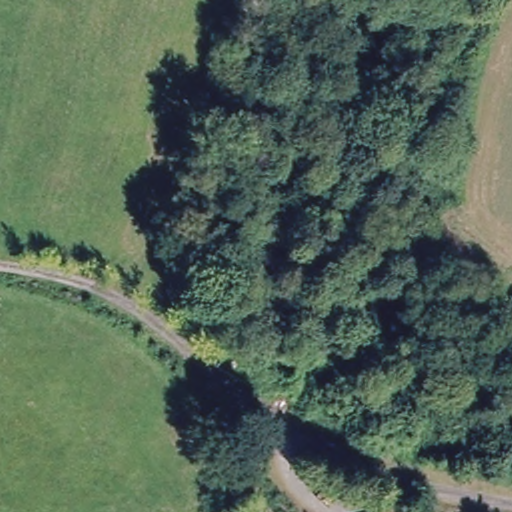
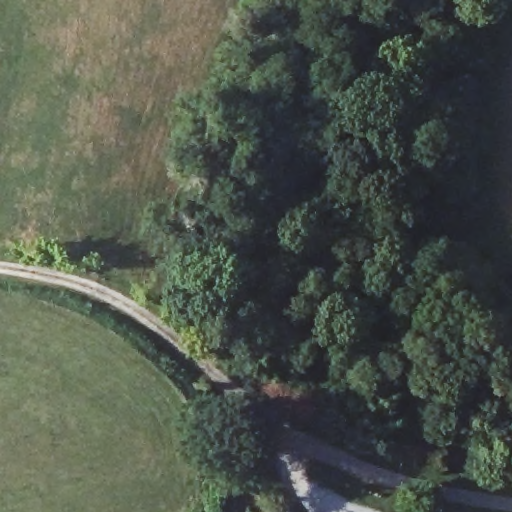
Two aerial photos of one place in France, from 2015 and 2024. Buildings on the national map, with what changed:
unchanged [(512,341),(512,353),(506,347),(512,341)]

